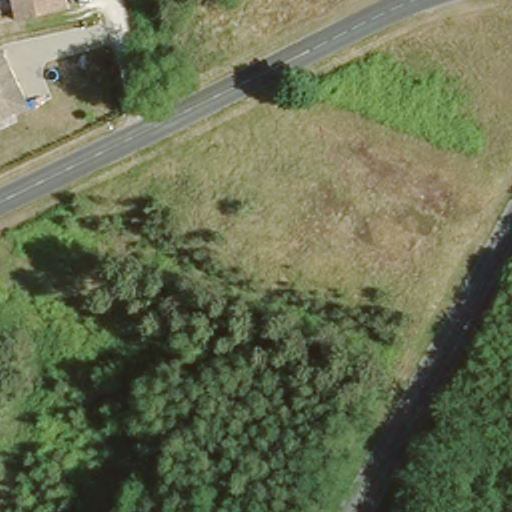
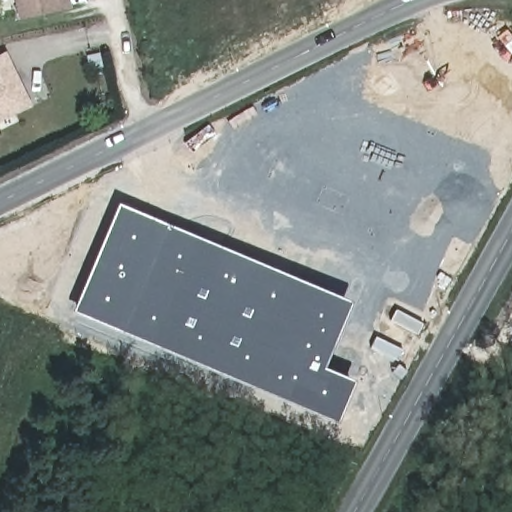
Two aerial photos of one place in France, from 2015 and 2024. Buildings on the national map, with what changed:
unchanged [(17,18),(13,0),(65,0),(67,7),(17,18)]
unchanged [(0,55),(1,55),(2,53),(22,85),(32,103),(26,106),(2,120),(0,121),(0,55)]
new [(352,302),(325,368),(355,380),(338,422),(72,310),(119,203),(352,302)]

